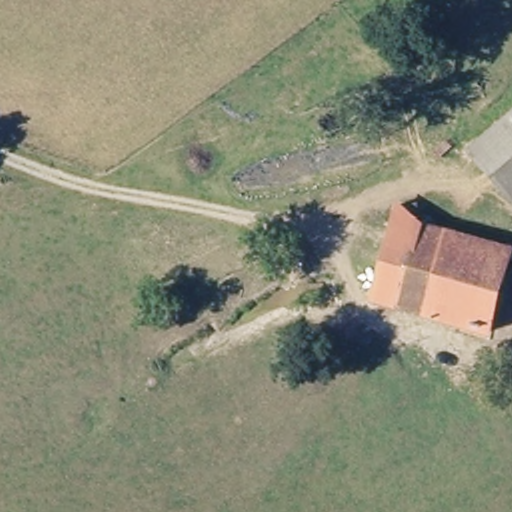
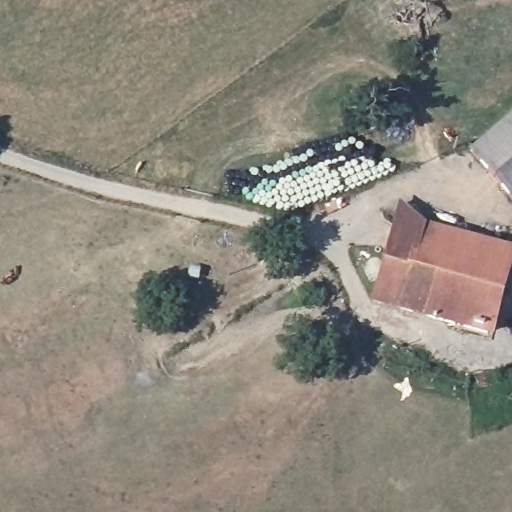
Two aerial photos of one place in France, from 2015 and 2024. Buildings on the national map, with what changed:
unchanged [(512,199),(470,149),(512,116),(512,199)]
unchanged [(385,261),(398,218),(424,225),(411,269),(385,261)]
unchanged [(385,261),(411,269),(424,225),(512,246),(512,263),(493,334),(431,313),(401,304),(373,296),(385,261)]

